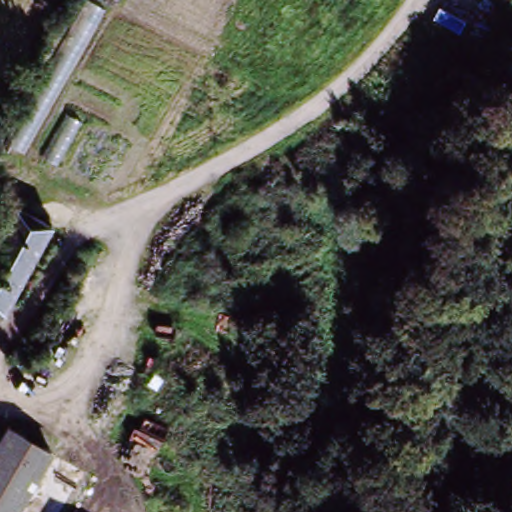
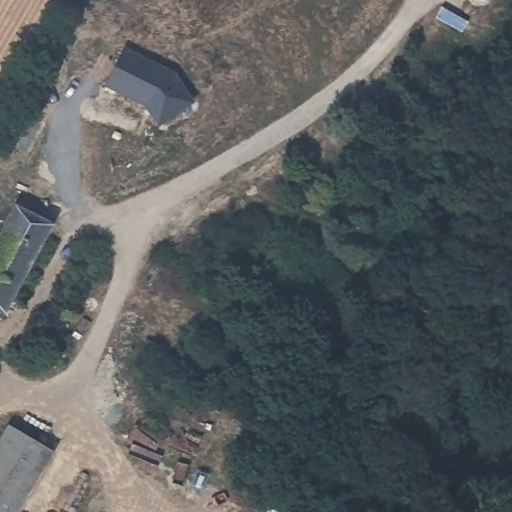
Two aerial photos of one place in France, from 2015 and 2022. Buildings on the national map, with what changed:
new [(126,48),(176,74),(195,104),(161,126),(144,105),(106,85),(126,48)]
unchanged [(58,220),(0,309),(0,217),(9,200),(58,220)]
unchanged [(19,512),(0,512),(0,448),(11,428),(55,451),(19,512)]

